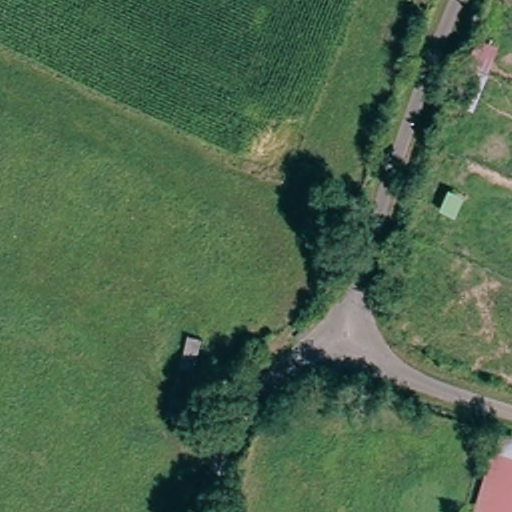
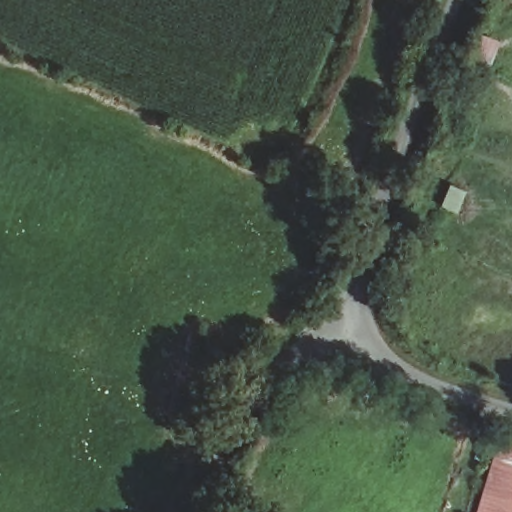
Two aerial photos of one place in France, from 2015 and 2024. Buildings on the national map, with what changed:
unchanged [(474,108),(453,99),(479,33),(500,42),(474,108)]
unchanged [(470,512),(484,466),(512,474),(512,511),(512,512),(470,512)]

